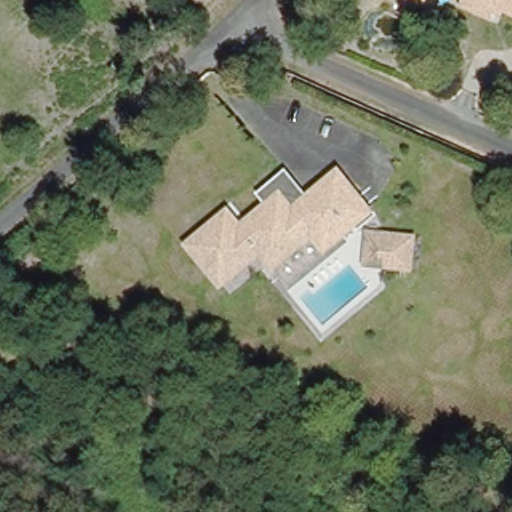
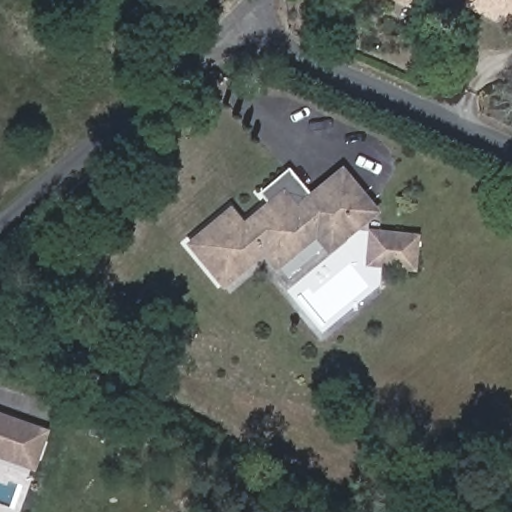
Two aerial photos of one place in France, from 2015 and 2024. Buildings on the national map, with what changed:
new [(391,0),(432,0),(425,15),(391,0)]
unchanged [(487,23),(461,10),(465,0),(512,0),(512,20),(493,11),(487,23)]
unchanged [(375,214),(329,253),(315,236),(275,269),(261,252),(226,282),(191,240),(226,211),(241,229),(267,208),(262,202),(281,186),(289,195),(301,185),(313,200),(343,175),(375,214)]
unchanged [(412,267),(362,262),(366,229),(415,232),(412,267)]
new [(0,458),(0,412),(49,429),(35,470),(0,458)]

